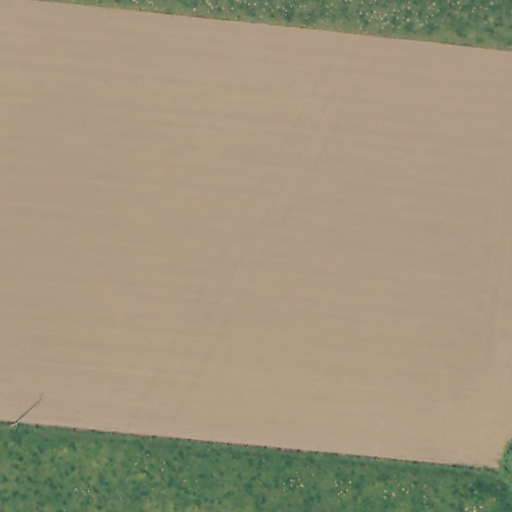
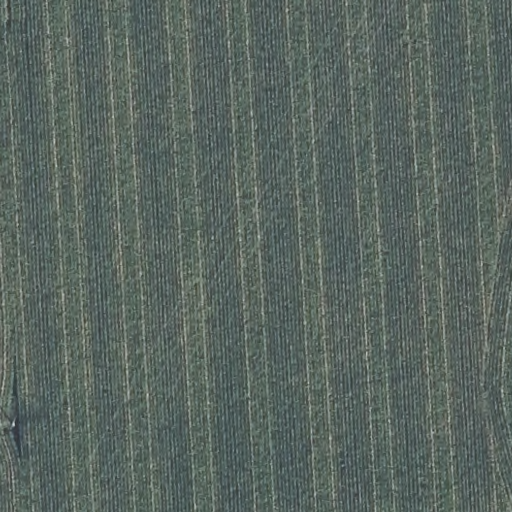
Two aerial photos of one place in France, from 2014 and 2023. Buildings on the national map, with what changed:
[]

